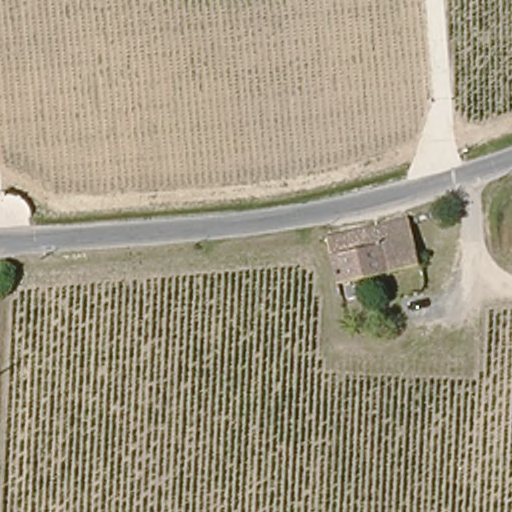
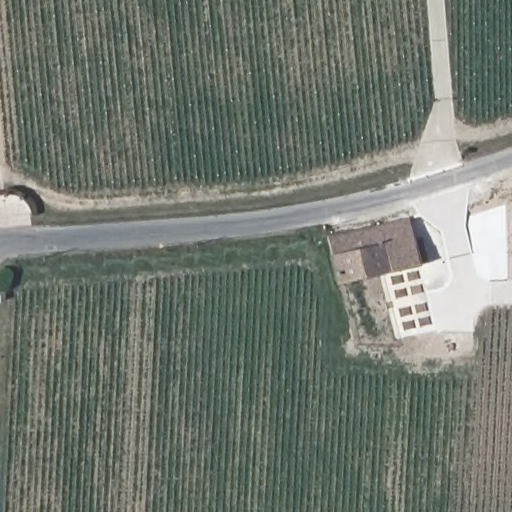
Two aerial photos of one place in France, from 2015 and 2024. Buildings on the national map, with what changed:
unchanged [(323,235),(403,217),(413,265),(333,282),(323,235)]

